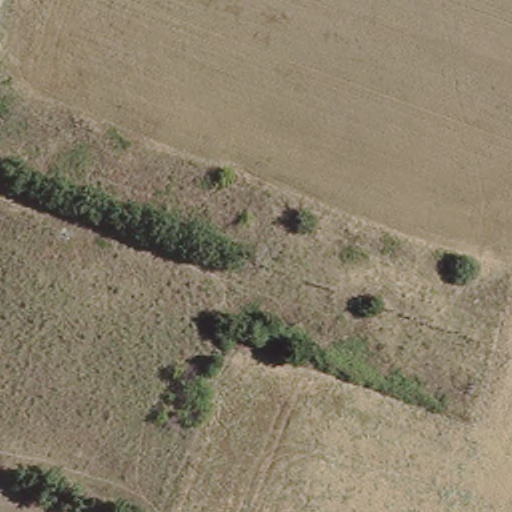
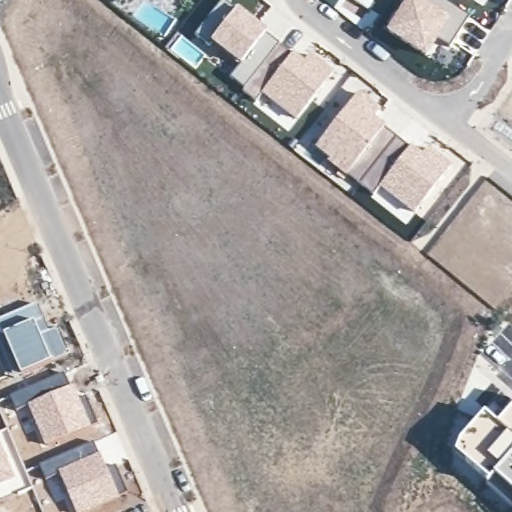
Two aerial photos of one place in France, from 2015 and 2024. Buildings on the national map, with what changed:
new [(406,0),(443,0),(469,17),(449,47),(438,41),(426,60),(385,32),(406,0)]
new [(235,10),(238,7),(266,33),(238,66),(209,42),(235,10)]
new [(242,92),(244,90),(231,79),(238,66),(266,34),(279,45),(290,54),(281,65),(259,92),(256,102),(242,92)]
new [(281,65),(291,52),(303,61),(311,52),(334,71),(295,121),(259,92),(281,65)]
new [(359,92),(381,109),(374,117),(385,127),(346,176),(314,149),(359,92)]
new [(385,127),(409,145),(378,187),(371,196),(346,176),(385,127)]
new [(409,145),(422,154),(428,147),(452,166),(414,215),(378,187),(409,145)]
new [(49,330),(56,327),(68,355),(19,374),(0,333),(0,318),(38,303),(49,330)]
new [(91,427),(44,448),(26,405),(15,410),(8,395),(62,373),(68,386),(72,384),(91,427)]
new [(486,485),(453,452),(463,436),(485,411),(496,422),(512,405),(512,509),(486,485)]
new [(86,512),(73,512),(58,476),(44,481),(38,465),(95,441),(100,452),(106,465),(120,497),(86,512)]
new [(15,479),(0,486),(0,445),(1,445),(15,479)]

